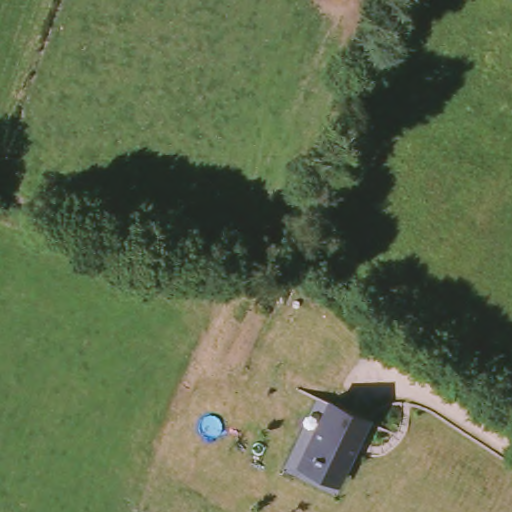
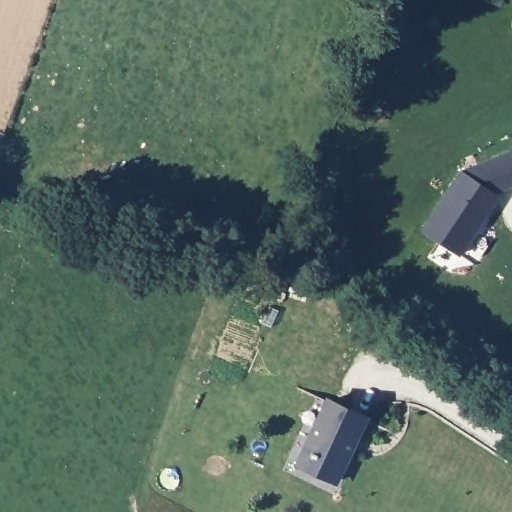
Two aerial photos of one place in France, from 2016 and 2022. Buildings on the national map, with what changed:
new [(478,212),(485,216),(460,254),(423,230),(461,172),(512,152),(512,184),(491,192),(478,212)]
unchanged [(308,443),(332,397),(367,415),(337,477),(310,464),(301,460),(308,443)]

